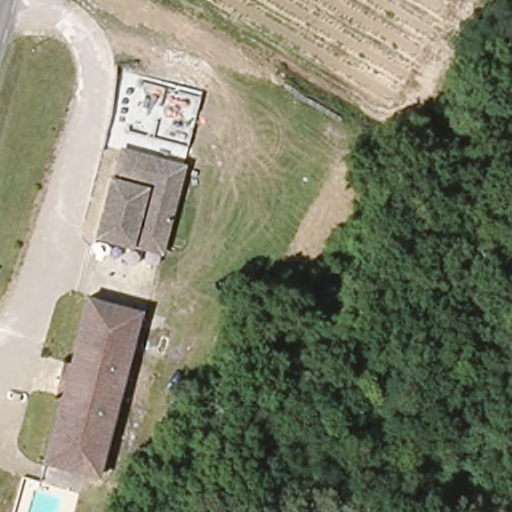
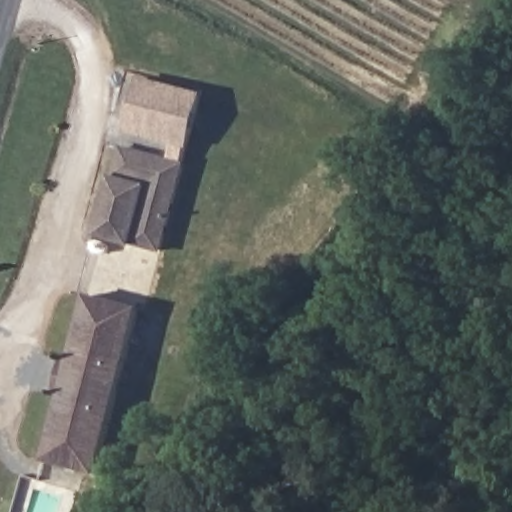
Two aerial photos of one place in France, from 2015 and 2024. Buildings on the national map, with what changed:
new [(124,133),(137,77),(206,93),(190,149),(124,133)]
unchanged [(133,245),(133,248),(98,238),(114,177),(119,178),(127,152),(186,167),(166,244),(163,254),(133,245)]
unchanged [(46,461),(63,396),(56,394),(65,361),(72,364),(90,298),(143,312),(97,475),(46,461)]

